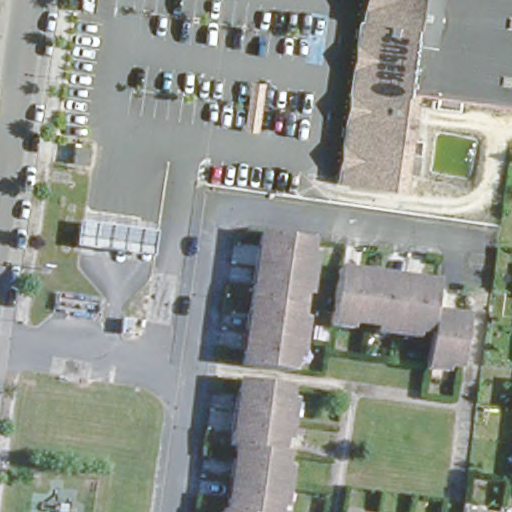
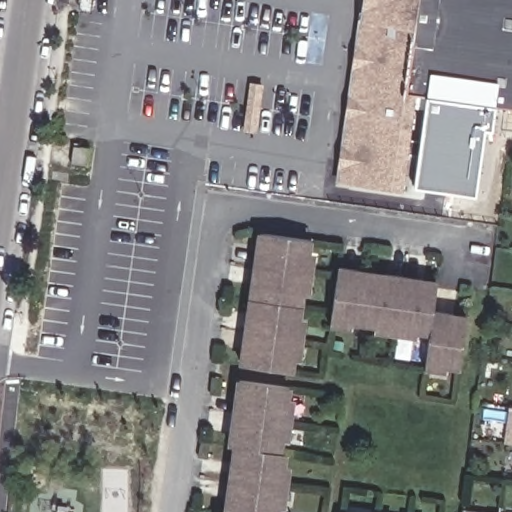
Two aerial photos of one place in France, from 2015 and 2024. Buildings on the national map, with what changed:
unchanged [(512,109),(415,95),(402,191),(351,185),(338,184),(364,0),(512,0),(512,109)]
new [(414,170),(405,169),(415,95),(494,106),(491,130),(485,129),(475,195),(412,187),(414,170)]
unchanged [(86,165),(71,164),(73,146),(89,148),(86,165)]
unchanged [(264,224),(316,230),(311,263),(259,256),(264,224)]
unchanged [(306,296),(255,289),(259,256),(311,263),(306,296)]
unchanged [(364,319),(331,315),(338,264),(371,268),(364,319)]
unchanged [(397,324),(364,319),(371,268),(404,273),(397,324)]
unchanged [(437,277),(433,307),(430,328),(397,324),(404,273),(437,277)]
unchanged [(301,329),(250,322),(255,289),(306,296),(301,329)]
unchanged [(459,363),(425,358),(430,328),(433,307),(467,312),(459,363)]
unchanged [(298,354),(297,362),(246,355),(250,322),(301,329),(298,354)]
unchanged [(238,380),(289,387),(285,420),(234,413),(238,380)]
unchanged [(281,453),(234,446),(229,446),(234,413),(285,420),(281,453)]
unchanged [(286,453),(281,487),(230,480),(234,446),(281,453),(286,453)]
unchanged [(278,512),(226,512),(230,480),(281,487),(278,512)]

